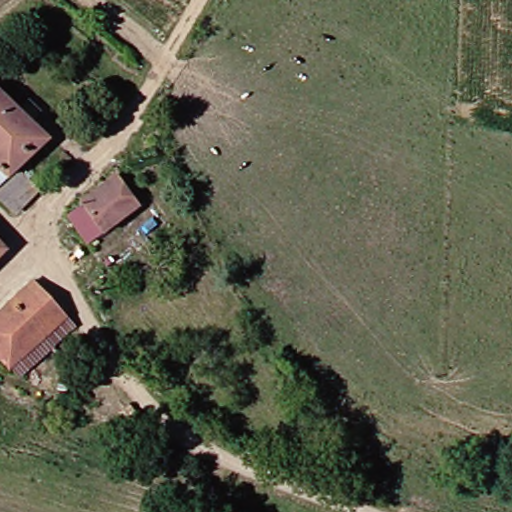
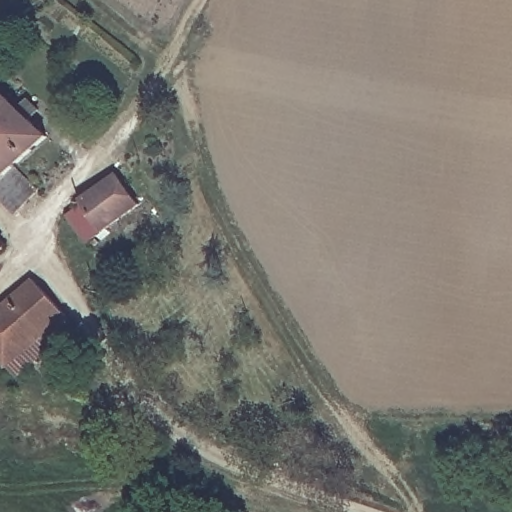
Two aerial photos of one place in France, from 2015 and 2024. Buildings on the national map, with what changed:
unchanged [(36,98),(45,108),(35,119),(54,139),(21,171),(12,180),(0,167),(0,84),(25,108),(36,98)]
unchanged [(20,219),(0,199),(0,167),(12,180),(21,171),(43,196),(20,219)]
unchanged [(83,209),(82,207),(119,178),(141,206),(90,245),(70,219),(83,209)]
unchanged [(0,254),(0,237),(9,246),(0,254)]
unchanged [(77,321),(20,374),(0,353),(0,323),(42,284),(77,321)]

